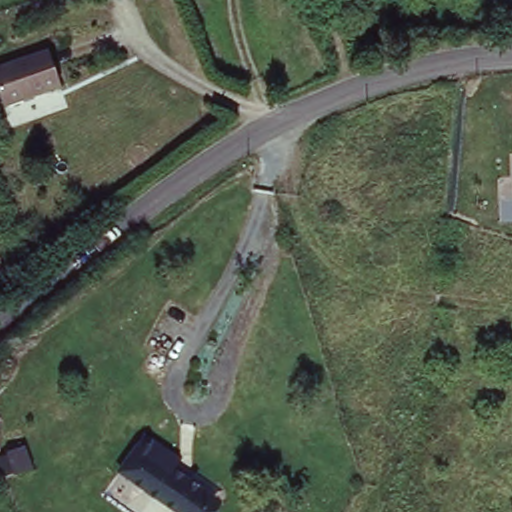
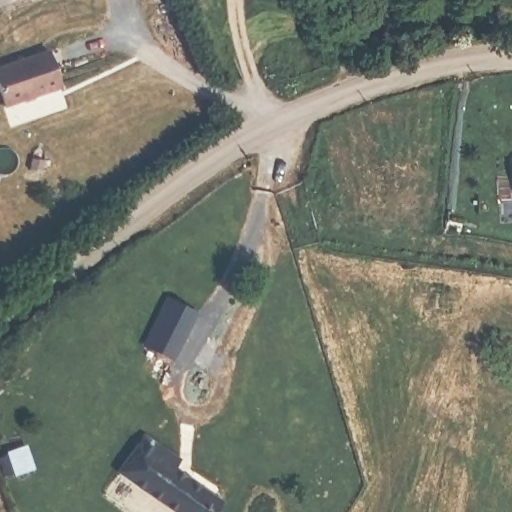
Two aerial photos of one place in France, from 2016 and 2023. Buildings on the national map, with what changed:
unchanged [(59,81),(5,99),(0,84),(0,63),(48,47),(59,81)]
new [(175,360),(144,347),(165,297),(196,311),(175,360)]
unchanged [(215,512),(176,512),(118,477),(140,441),(153,449),(177,463),(171,472),(215,498),(221,502),(215,512)]
new [(32,469),(2,477),(0,468),(0,454),(24,445),(32,469)]

